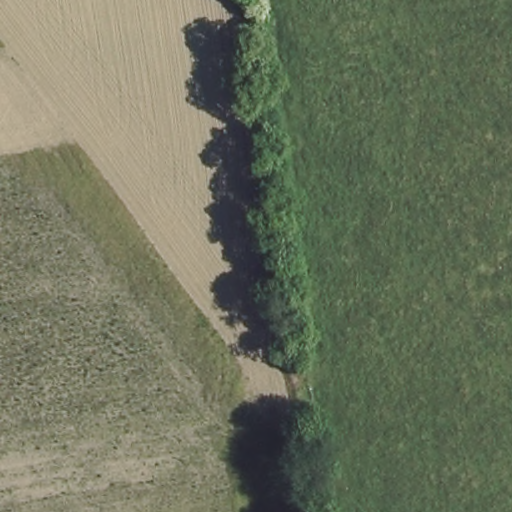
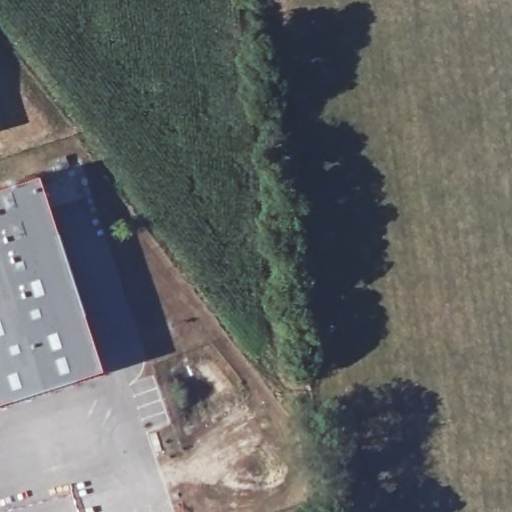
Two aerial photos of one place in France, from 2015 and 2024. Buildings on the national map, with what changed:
new [(32,175),(95,371),(0,401),(0,185),(32,175)]

